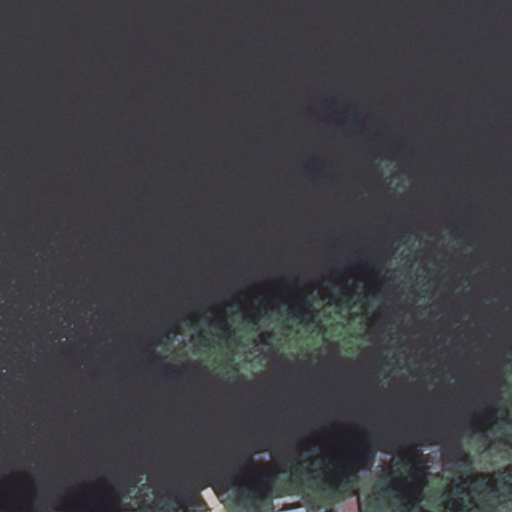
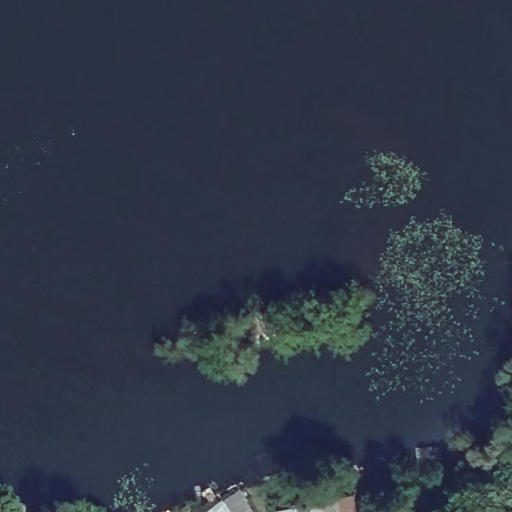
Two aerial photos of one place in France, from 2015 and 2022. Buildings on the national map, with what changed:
unchanged [(344,512),(327,512),(324,498),(341,495),(344,512)]
unchanged [(274,512),(273,504),(296,500),(298,512),(274,512)]

